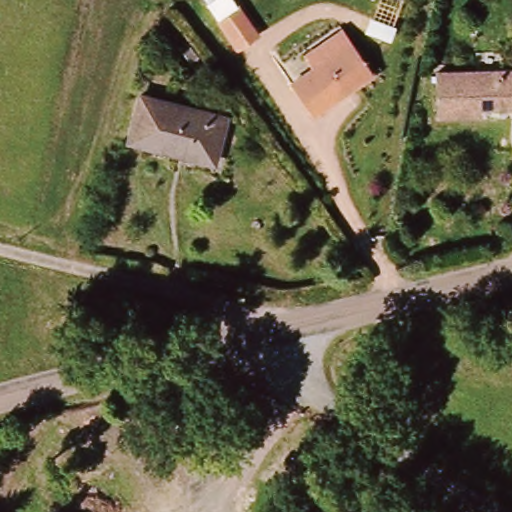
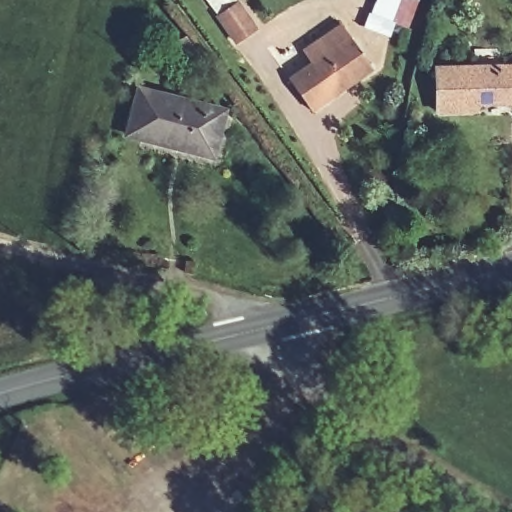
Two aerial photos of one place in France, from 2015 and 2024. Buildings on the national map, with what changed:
new [(376,0),(419,0),(407,29),(395,24),(389,38),(365,28),(376,0)]
unchanged [(257,29),(238,42),(219,15),(238,2),(257,29)]
unchanged [(313,110),(291,79),(351,37),(373,68),(313,110)]
unchanged [(512,66),(512,101),(488,103),(489,111),(451,112),(451,70),(512,66)]
unchanged [(237,110),(223,152),(137,128),(150,82),(237,110)]

